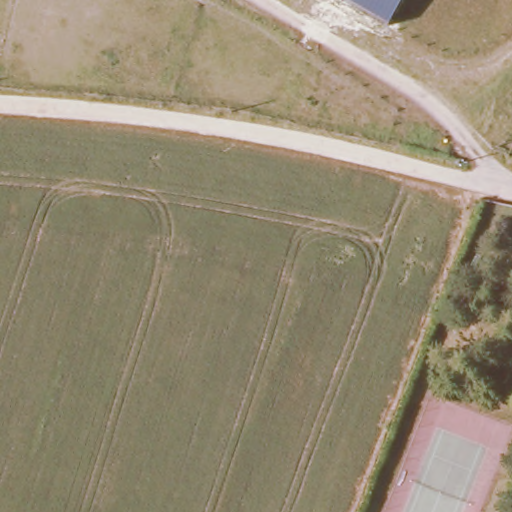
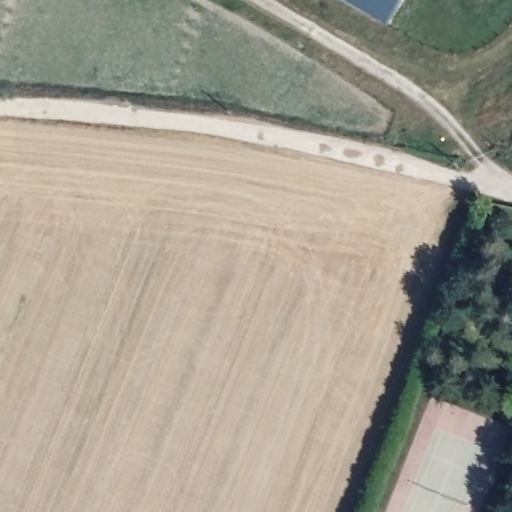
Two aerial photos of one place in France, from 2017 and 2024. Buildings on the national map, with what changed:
unchanged [(345,0),(404,0),(389,25),(345,0)]

